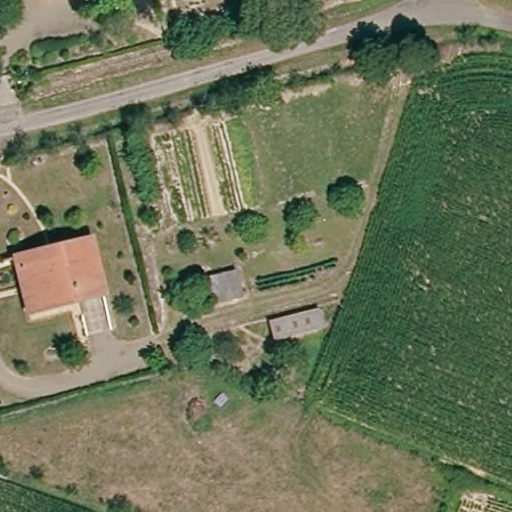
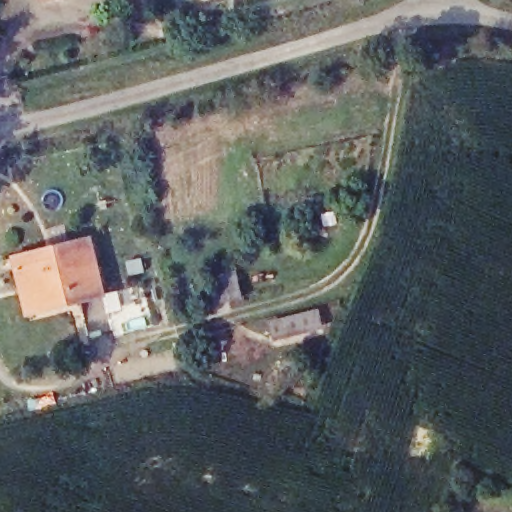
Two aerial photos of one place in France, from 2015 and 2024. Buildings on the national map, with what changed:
unchanged [(91,236),(109,289),(34,309),(20,258),(91,236)]
unchanged [(254,290),(225,298),(215,276),(247,266),(254,290)]
unchanged [(320,321),(275,333),(268,317),(315,305),(320,321)]

